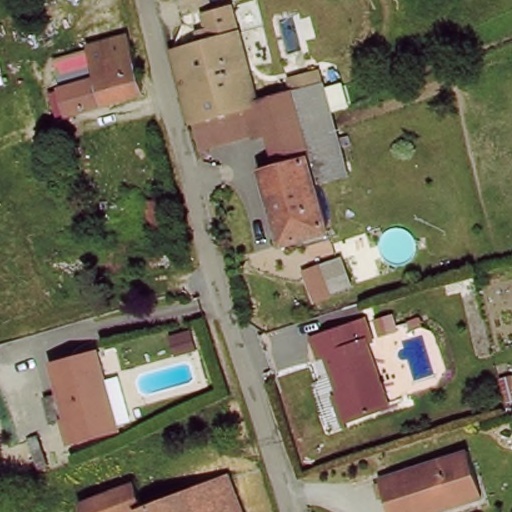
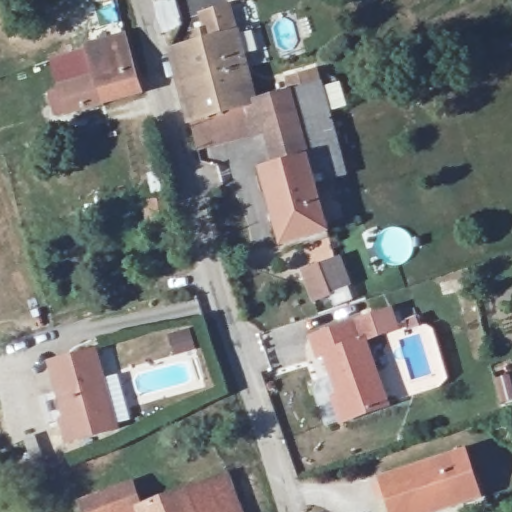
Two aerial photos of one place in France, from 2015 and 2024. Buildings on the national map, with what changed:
unchanged [(209,49),(201,15),(233,6),(241,38),(209,49)]
unchanged [(94,76),(86,42),(123,32),(141,91),(65,111),(59,86),(94,76)]
unchanged [(194,99),(183,57),(209,49),(241,38),(246,37),(264,100),(248,105),(198,121),(194,99)]
unchanged [(322,189),(333,234),(289,248),(267,177),(284,171),(264,100),(270,98),(296,90),(298,97),(326,89),(335,117),(352,180),(322,189)]
unchanged [(248,105),(257,136),(207,152),(199,126),(198,121),(248,105)]
unchanged [(171,197),(174,231),(153,233),(146,201),(171,197)]
unchanged [(355,291),(313,305),(302,272),(344,257),(355,291)]
unchanged [(311,337),(357,320),(388,410),(353,422),(329,352),(318,356),(311,337)]
unchanged [(114,406),(108,407),(112,432),(68,442),(63,415),(69,413),(59,362),(103,352),(114,406)]
unchanged [(479,492),(417,512),(394,512),(382,477),(464,450),(479,492)]
unchanged [(231,473),(246,512),(148,512),(148,510),(231,473)]
unchanged [(143,512),(84,512),(81,503),(134,479),(148,510),(143,512)]

